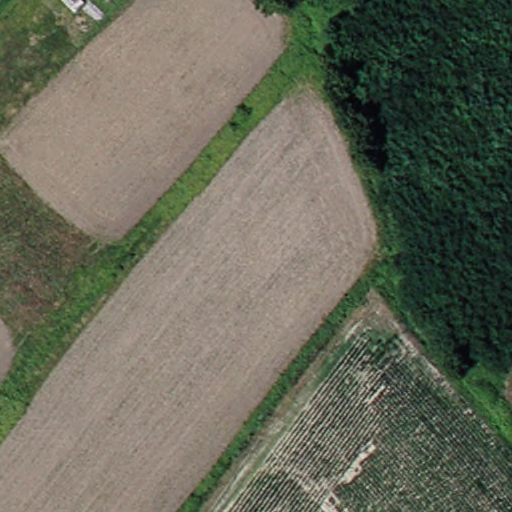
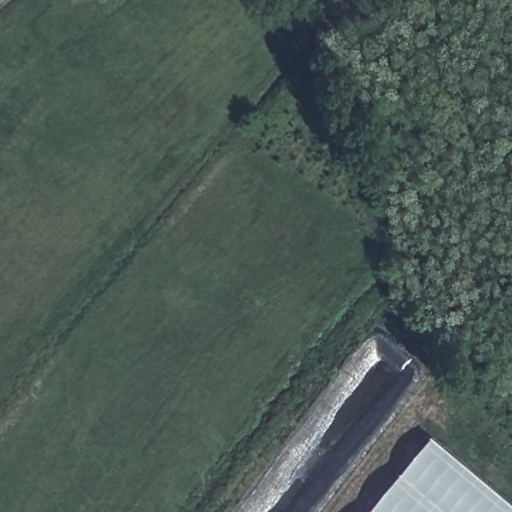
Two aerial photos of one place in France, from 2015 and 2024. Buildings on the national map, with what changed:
new [(512,510),(512,512),(372,512),(430,442),(512,510)]

